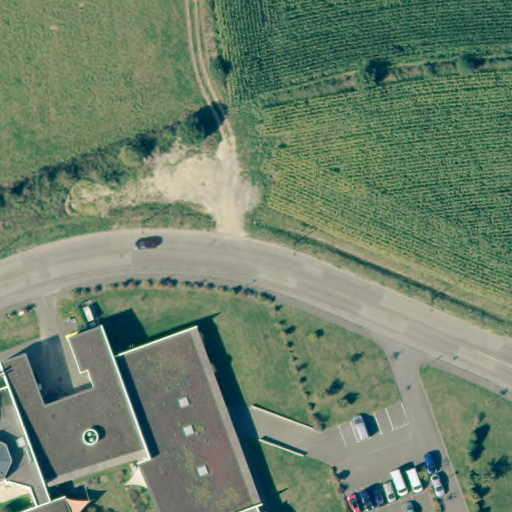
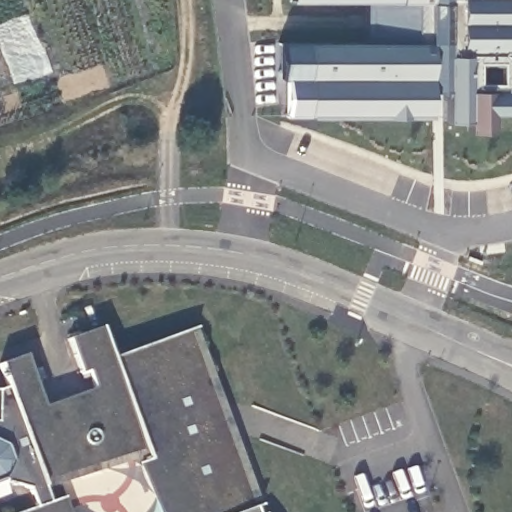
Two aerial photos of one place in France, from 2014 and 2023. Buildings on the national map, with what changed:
new [(496,116),(497,133),(472,134),(471,123),(449,123),(449,91),(432,91),(432,116),(283,117),(283,42),(368,41),(367,2),(292,2),(291,0),(512,0),(512,116),(496,116)]
unchanged [(26,484),(5,477),(0,479),(0,383),(2,382),(0,375),(0,357),(21,350),(41,406),(91,388),(83,366),(76,368),(63,334),(97,322),(108,353),(187,324),(215,401),(224,425),(255,512),(155,512),(134,459),(142,457),(142,453),(42,486),(45,497),(60,492),(67,512),(6,512),(32,502),(26,484)]
unchanged [(263,512),(256,512),(260,508),(263,512)]

